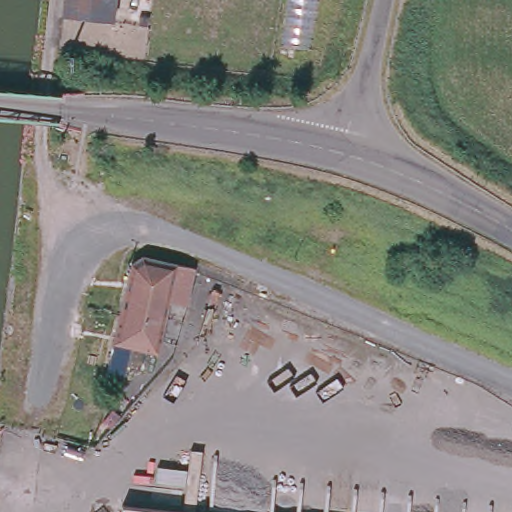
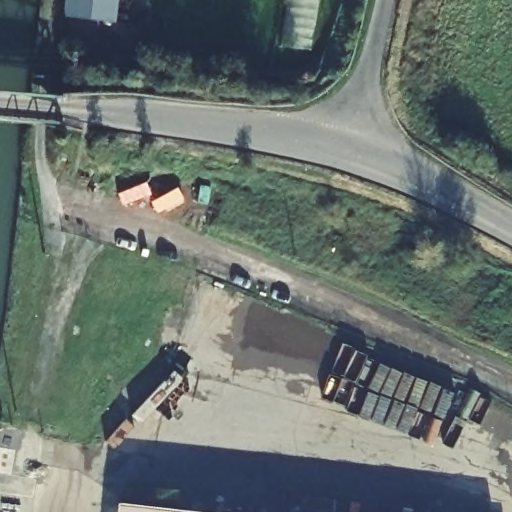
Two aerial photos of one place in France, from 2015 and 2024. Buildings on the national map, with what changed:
unchanged [(114,21),(62,14),(63,0),(116,0),(114,21)]
demolished [(141,254),(194,267),(186,304),(169,300),(157,354),(130,348),(122,379),(106,376),(131,262),(141,254)]
unchanged [(118,512),(119,508),(157,512),(118,512)]

